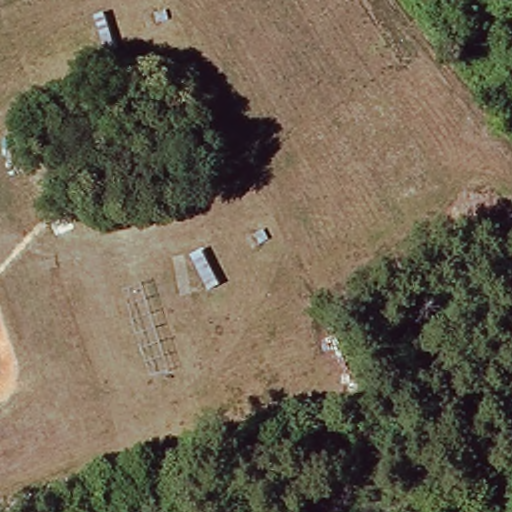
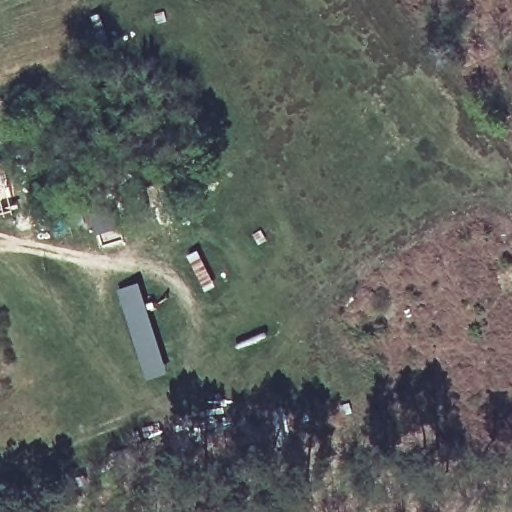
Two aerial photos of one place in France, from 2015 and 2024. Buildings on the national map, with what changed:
new [(119,289),(147,284),(156,347),(164,346),(168,374),(142,379),(119,289)]

